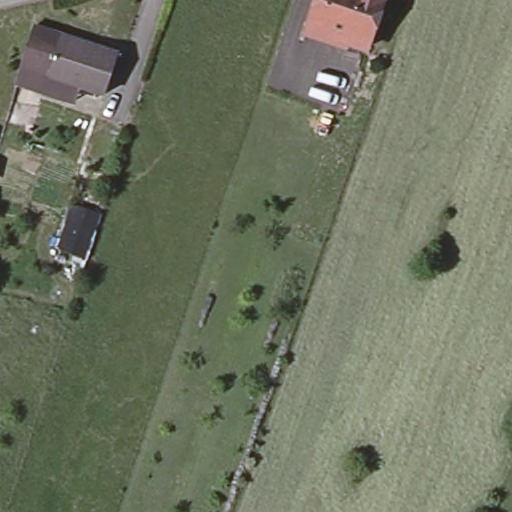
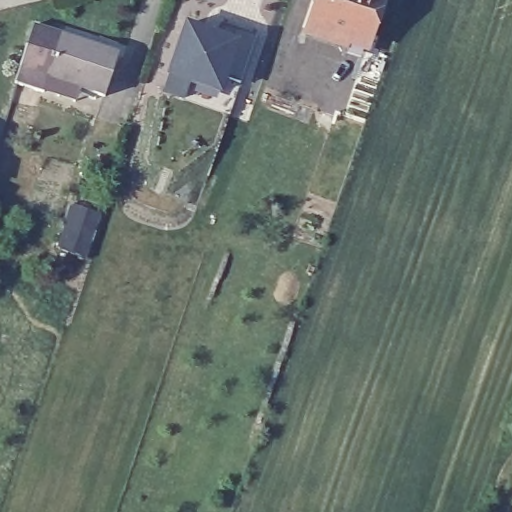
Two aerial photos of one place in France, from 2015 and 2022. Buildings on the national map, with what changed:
unchanged [(314,28),(313,27),(308,26),(317,0),(364,0),(350,41),(314,28)]
unchanged [(382,0),(366,47),(350,41),(364,0),(382,0)]
unchanged [(61,92),(44,87),(40,86),(20,79),(17,77),(34,22),(36,22),(57,30),(78,37),(99,43),(118,50),(105,91),(86,85),(80,83),(75,97),(61,92)]
new [(168,76),(185,22),(218,32),(223,24),(256,36),(240,83),(227,77),(221,94),(190,84),(184,102),(162,95),(168,76)]

